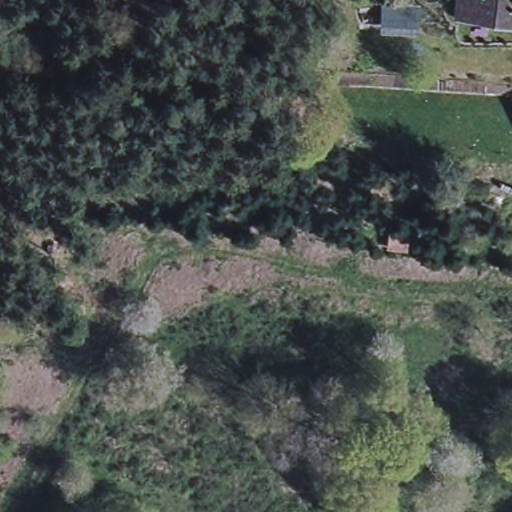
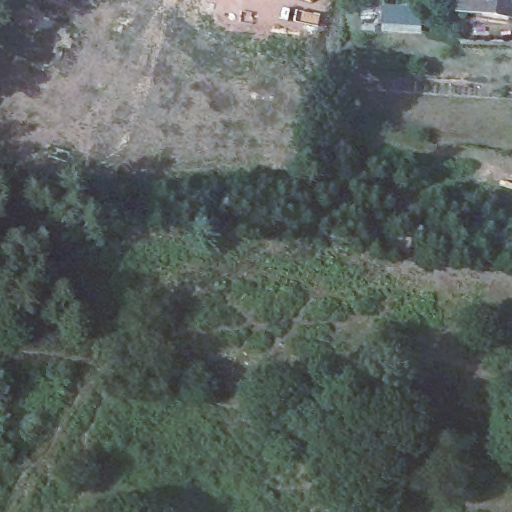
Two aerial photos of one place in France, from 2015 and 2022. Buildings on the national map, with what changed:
unchanged [(459,4),(459,0),(512,0),(512,13),(474,6),(459,4)]

